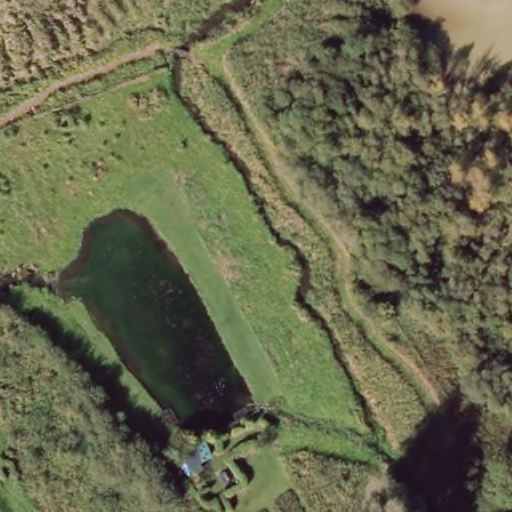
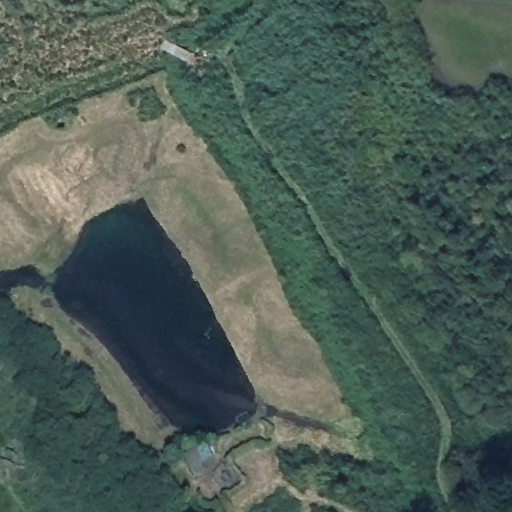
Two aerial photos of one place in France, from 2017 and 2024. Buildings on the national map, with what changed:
unchanged [(212,461),(202,464),(205,472),(191,477),(182,454),(205,444),(212,461)]

